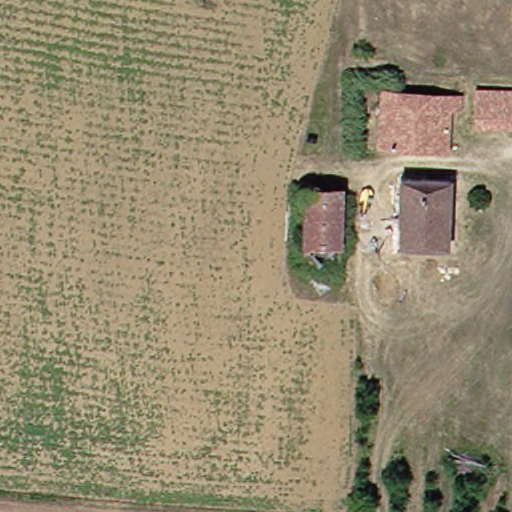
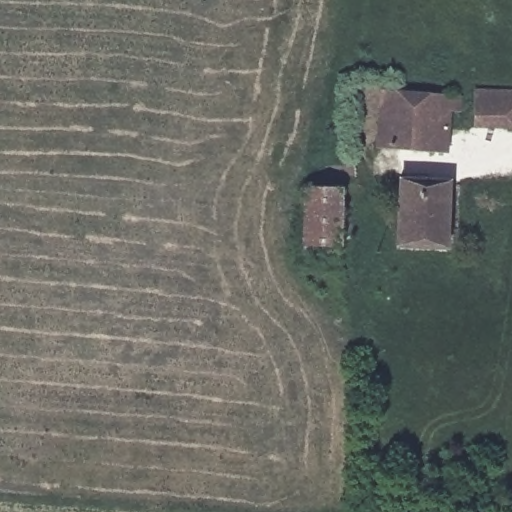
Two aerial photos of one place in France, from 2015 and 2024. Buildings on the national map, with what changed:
unchanged [(472,114),(463,113),(464,97),(475,99),(476,87),(512,88),(512,130),(472,127),(472,114)]
unchanged [(454,97),(448,163),(383,155),(390,92),(454,97)]
unchanged [(448,177),(453,248),(402,251),(398,179),(448,177)]
unchanged [(340,189),(338,272),(307,272),(308,189),(340,189)]

